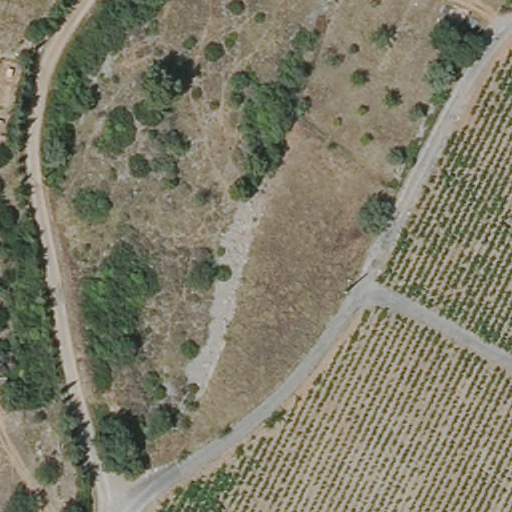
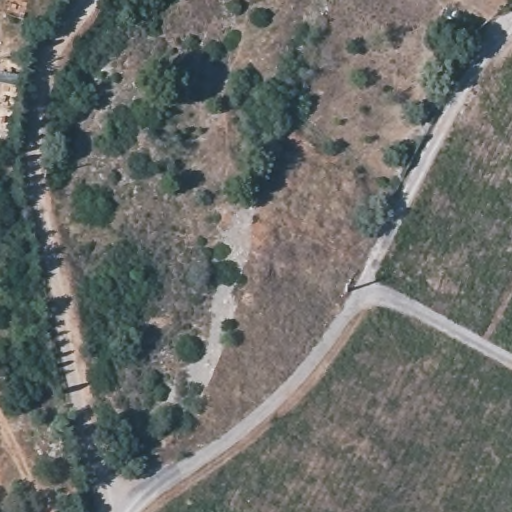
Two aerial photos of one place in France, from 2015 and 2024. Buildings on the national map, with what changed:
unchanged [(11,136),(0,134),(0,63),(0,60),(25,65),(11,136)]

